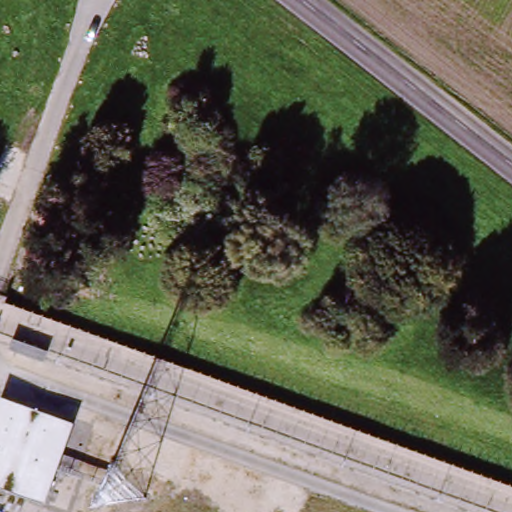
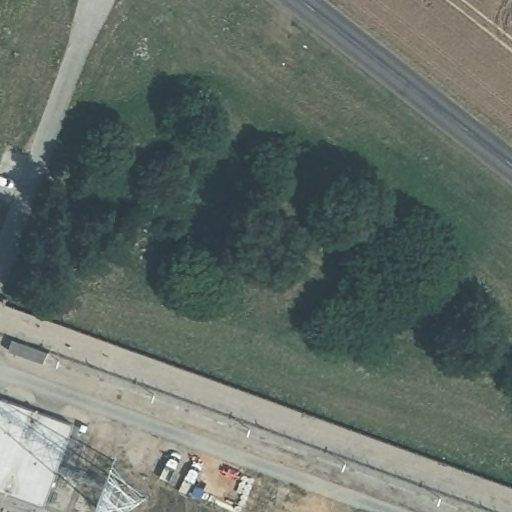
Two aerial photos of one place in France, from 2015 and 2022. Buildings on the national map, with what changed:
unchanged [(0,489),(0,396),(75,423),(45,503),(0,489)]

